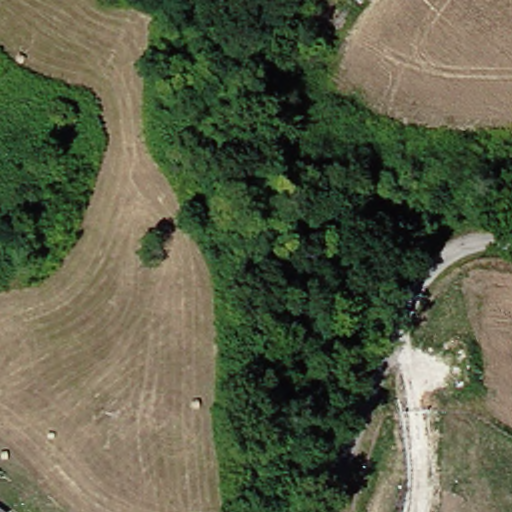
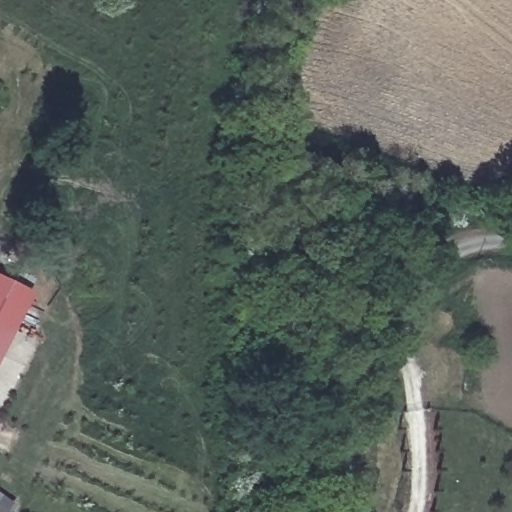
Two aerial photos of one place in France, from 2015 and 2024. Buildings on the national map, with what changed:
new [(10,333),(0,328),(0,277),(31,293),(10,333)]
new [(0,353),(0,328),(10,333),(0,353)]
unchanged [(8,512),(0,512),(0,503),(10,510),(8,512)]

